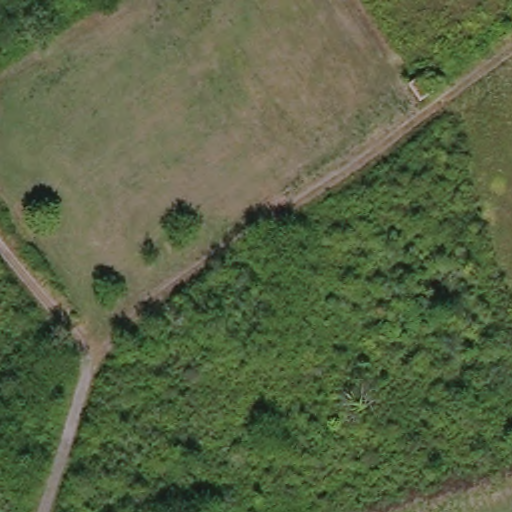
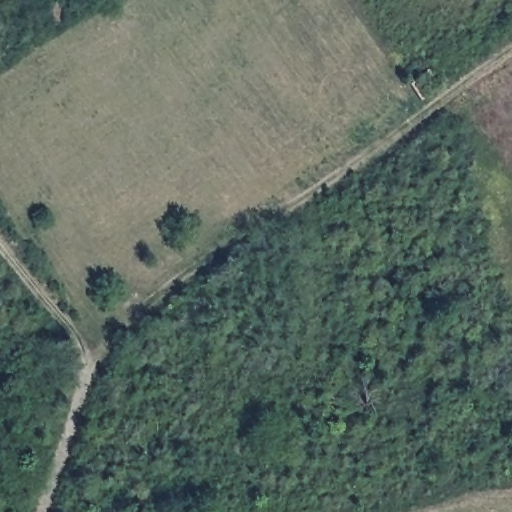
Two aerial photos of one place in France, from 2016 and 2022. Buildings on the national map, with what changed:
unchanged [(445,85),(431,97),(426,101),(414,85),(419,81),(434,69),(445,85)]

